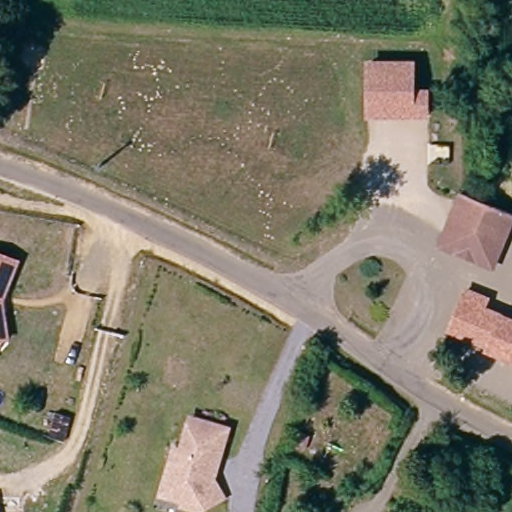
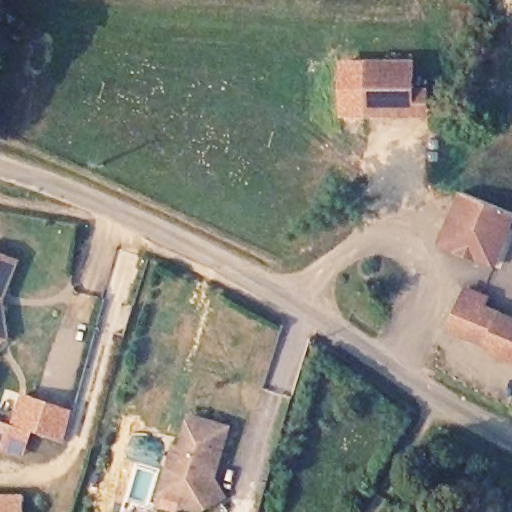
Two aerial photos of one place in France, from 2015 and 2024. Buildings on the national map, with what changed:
new [(366,59),(413,58),(413,62),(370,65),(373,117),(341,118),(340,60),(366,59)]
unchanged [(431,113),(417,114),(373,117),(370,65),(413,62),(416,90),(429,89),(431,113)]
unchanged [(511,214),(491,266),(448,250),(440,247),(460,195),(467,198),(511,214)]
unchanged [(4,301),(10,339),(2,340),(0,344),(0,254),(20,262),(4,301)]
unchanged [(483,346),(485,342),(445,327),(460,287),(482,295),(479,303),(512,316),(512,357),(483,346)]
new [(22,391),(74,409),(66,441),(32,432),(24,457),(0,449),(0,421),(11,424),(22,391)]
unchanged [(169,484),(179,446),(186,449),(196,416),(232,427),(223,460),(218,477),(228,495),(204,510),(188,505),(190,500),(166,493),(169,484)]
unchanged [(24,512),(0,512),(0,497),(24,497),(24,512)]

